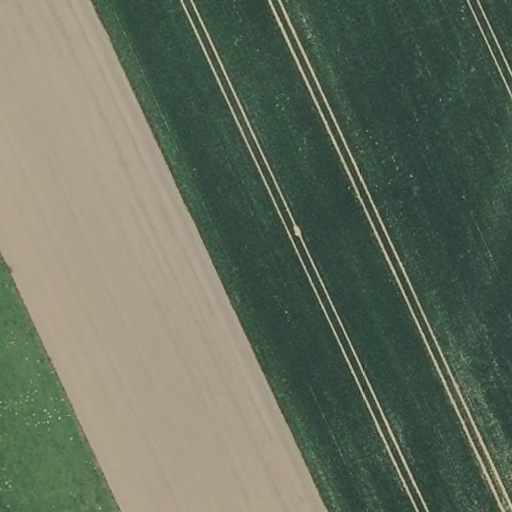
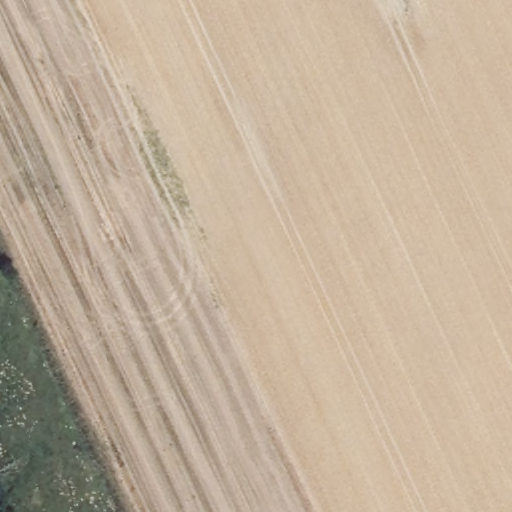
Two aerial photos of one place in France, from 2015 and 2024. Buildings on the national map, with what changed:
[]

